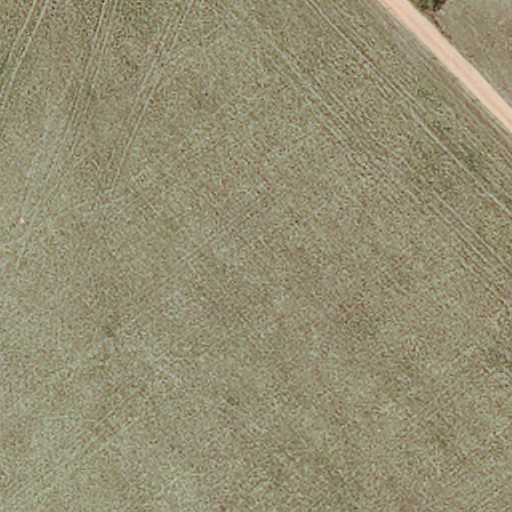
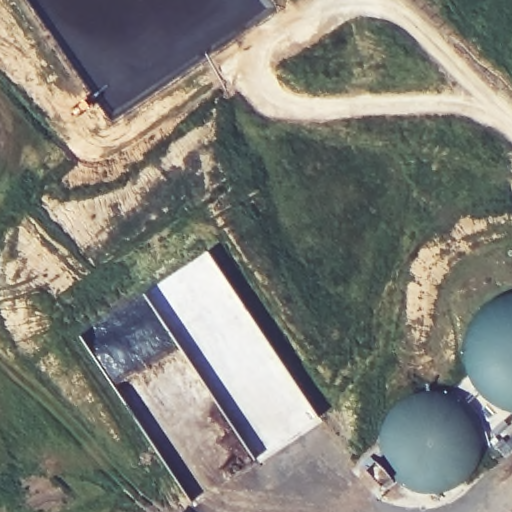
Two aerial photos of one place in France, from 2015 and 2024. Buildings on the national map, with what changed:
new [(207,249),(322,420),(260,461),(255,455),(262,449),(154,286),(207,249)]

